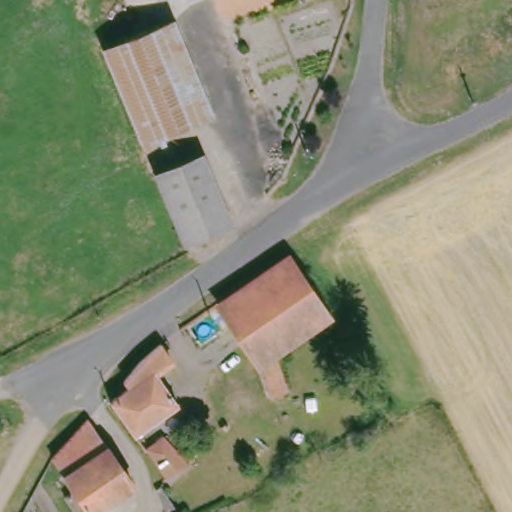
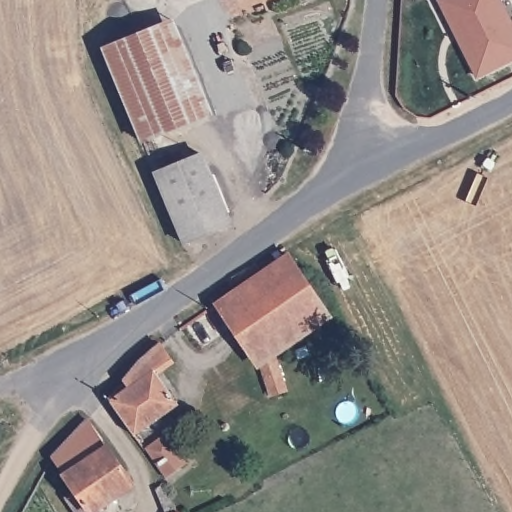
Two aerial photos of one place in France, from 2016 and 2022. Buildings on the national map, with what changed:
new [(512,23),(512,60),(477,79),(437,0),(500,0),(512,23)]
unchanged [(166,21),(176,44),(204,112),(183,121),(177,122),(136,136),(96,37),(136,26),(145,30),(166,21)]
unchanged [(201,156),(223,209),(224,215),(180,245),(154,175),(197,158),(201,156)]
unchanged [(286,251),(327,318),(273,356),(279,394),(266,396),(259,365),(213,301),(286,251)]
unchanged [(127,387),(122,380),(140,360),(160,345),(172,358),(155,372),(177,403),(133,434),(109,400),(127,387)]
unchanged [(127,482),(86,512),(84,512),(83,510),(81,512),(70,512),(58,495),(68,488),(46,457),(82,418),(127,482)]
unchanged [(185,457),(165,471),(146,441),(162,430),(185,457)]
unchanged [(154,485),(172,512),(160,512),(150,487),(154,485)]

